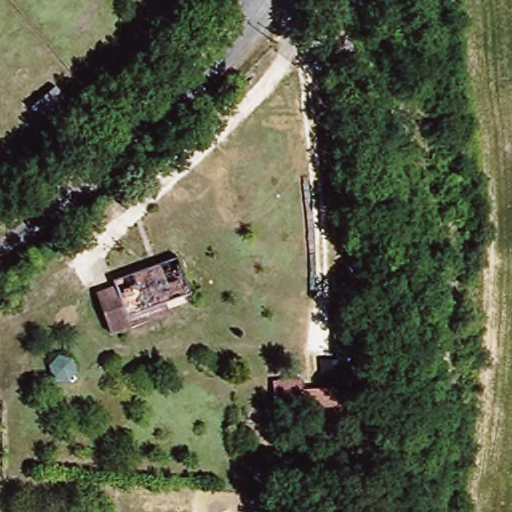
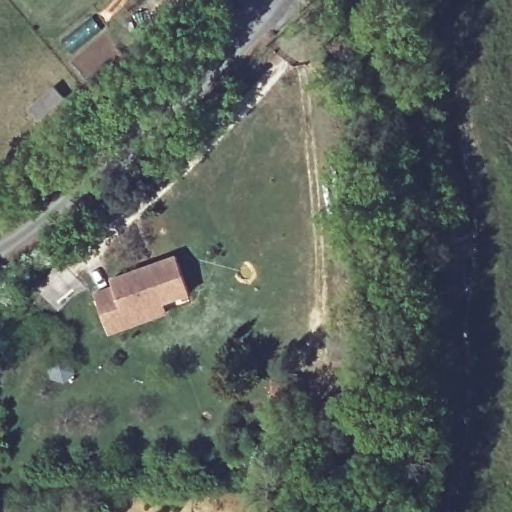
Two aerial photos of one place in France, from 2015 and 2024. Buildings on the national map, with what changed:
unchanged [(67,94),(42,116),(29,102),(55,80),(67,94)]
unchanged [(100,305),(121,295),(118,288),(172,262),(189,299),(134,325),(138,333),(120,342),(100,305)]
unchanged [(270,382),(299,377),(302,390),(331,389),(333,410),(275,421),(270,382)]

